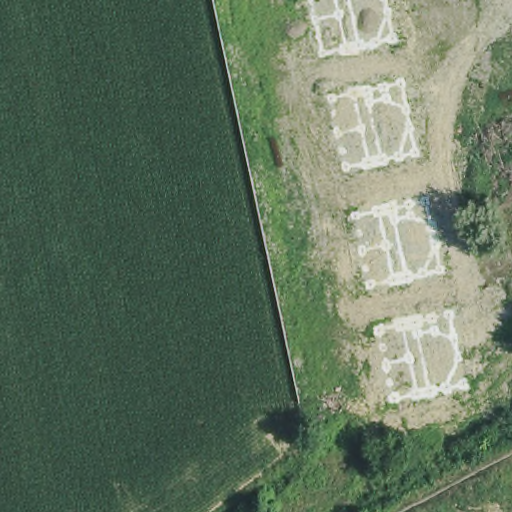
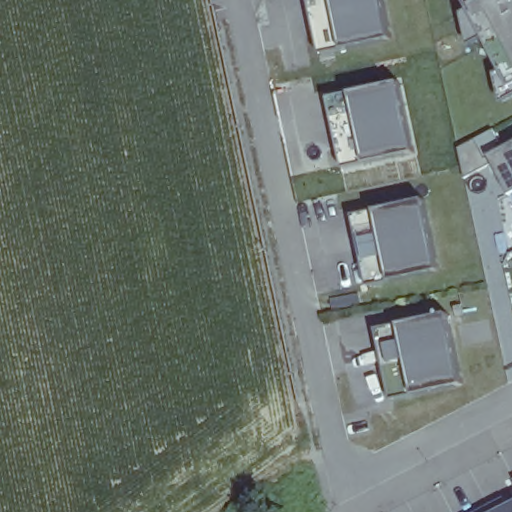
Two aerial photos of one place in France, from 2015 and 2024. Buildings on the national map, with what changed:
new [(395,40),(323,56),(311,0),(387,0),(395,40)]
new [(499,75),(505,72),(488,38),(473,46),(465,14),(473,10),(467,0),(512,0),(512,99),(506,103),(499,75)]
new [(403,83),(418,154),(346,170),(331,98),(403,83)]
new [(489,157),(512,144),(512,197),(512,198),(489,157)]
new [(428,200),(443,272),(371,287),(355,216),(428,200)]
new [(464,385),(393,400),(377,328),(449,313),(464,385)]
new [(512,512),(506,512),(512,509),(512,512)]

